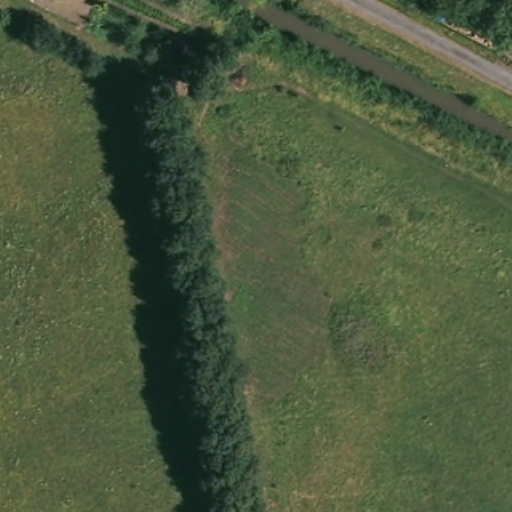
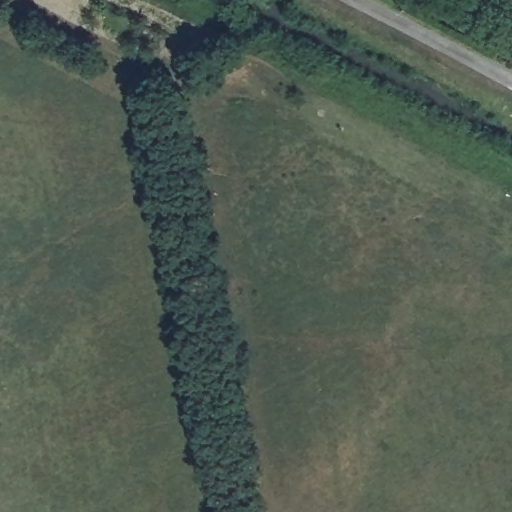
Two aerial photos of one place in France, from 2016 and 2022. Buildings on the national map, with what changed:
[]

